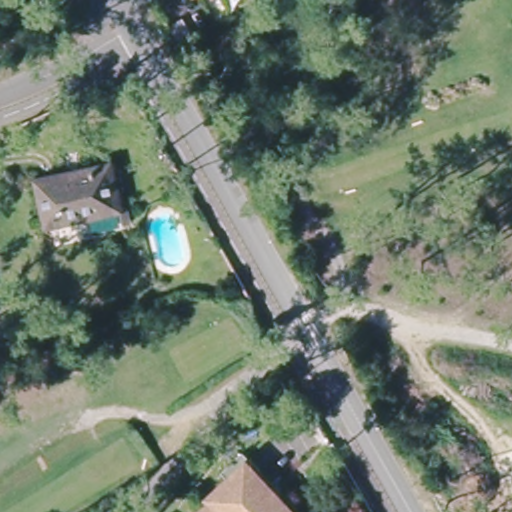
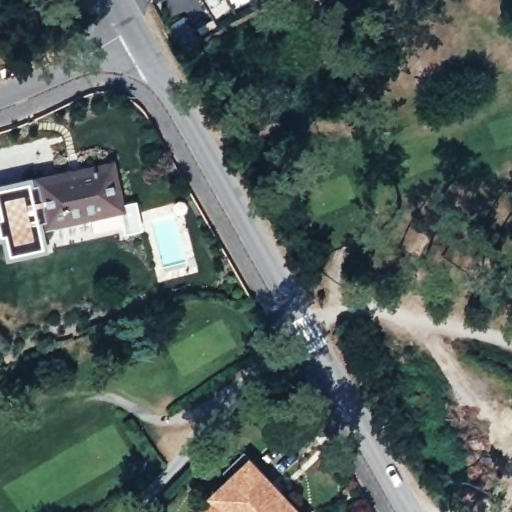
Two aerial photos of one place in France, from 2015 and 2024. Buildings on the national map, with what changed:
unchanged [(49,224),(38,180),(112,165),(115,179),(122,177),(125,190),(118,192),(122,209),(49,224)]
new [(49,224),(44,225),(50,250),(6,262),(2,242),(0,242),(0,184),(37,176),(38,180),(42,198),(49,224)]
unchanged [(220,497),(255,464),(273,483),(288,500),(301,512),(212,512),(224,501),(220,497)]

